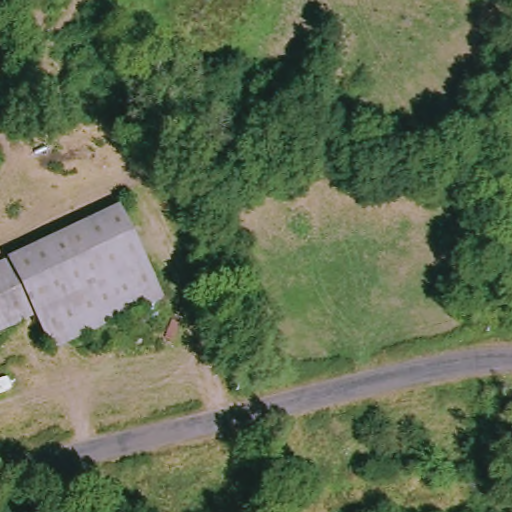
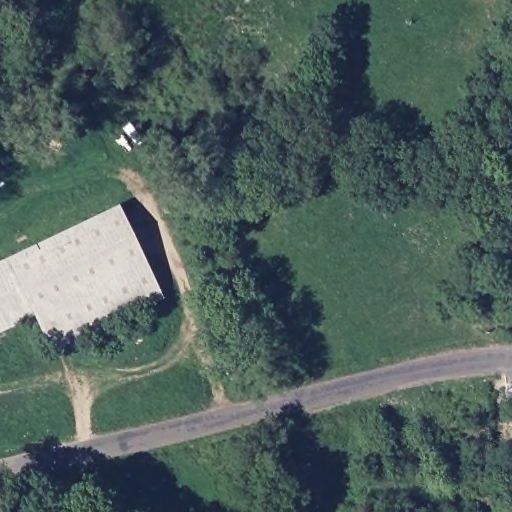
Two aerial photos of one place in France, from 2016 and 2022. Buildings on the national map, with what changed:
unchanged [(156,299),(47,348),(31,315),(0,328),(0,261),(115,210),(156,299)]

